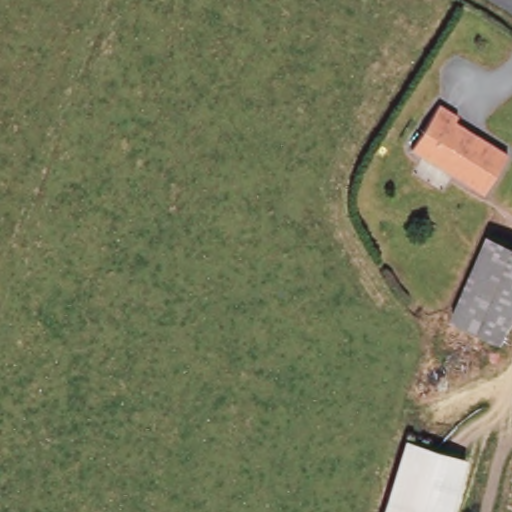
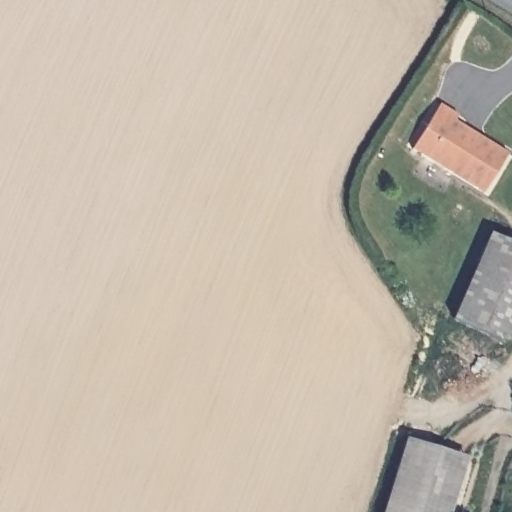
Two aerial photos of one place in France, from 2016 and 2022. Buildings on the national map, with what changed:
unchanged [(457,114),(452,122),(506,155),(481,195),(411,152),(440,104),(457,114)]
unchanged [(498,340),(452,323),(487,236),(512,247),(512,304),(498,340)]
unchanged [(469,456),(450,512),(382,512),(405,437),(469,456)]

